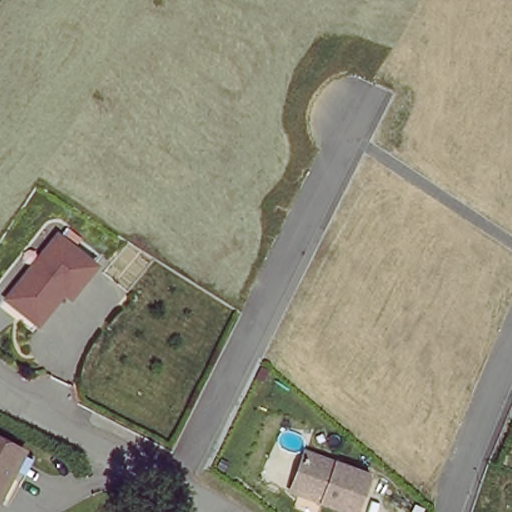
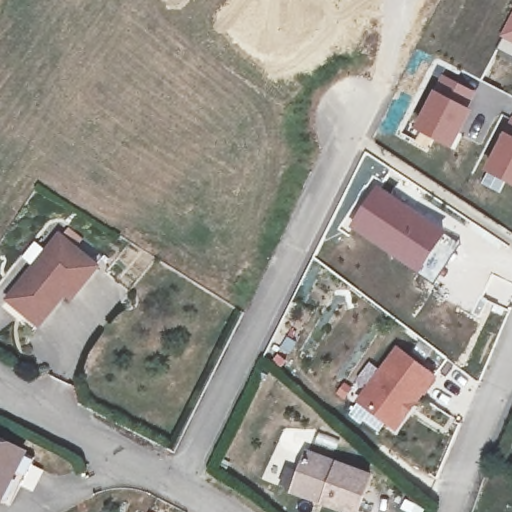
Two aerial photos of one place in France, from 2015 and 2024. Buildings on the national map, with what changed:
new [(501,37),(499,35),(512,9),(512,58),(495,48),(501,37)]
new [(453,149),(415,127),(435,90),(443,75),(476,93),(469,109),(473,111),(453,149)]
new [(486,169),(505,132),(512,118),(512,184),(486,169)]
new [(421,274),(351,227),(377,186),(448,232),(421,274)]
unchanged [(59,238),(96,269),(70,299),(64,294),(36,325),(6,299),(59,238)]
new [(358,399),(398,346),(438,377),(397,431),(358,399)]
unchanged [(17,474),(10,471),(0,491),(0,437),(27,452),(17,474)]
unchanged [(305,457),(370,479),(359,512),(340,512),(291,494),(305,457)]

